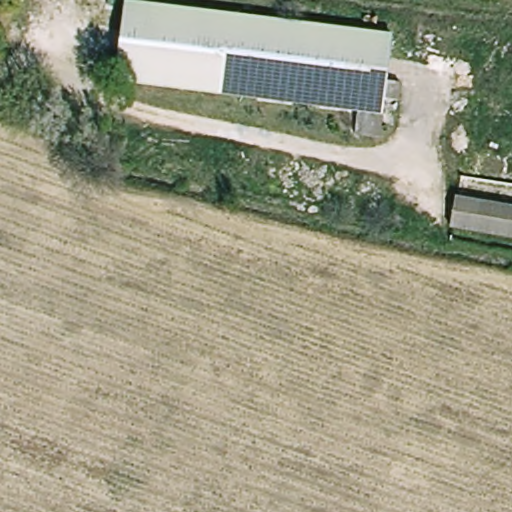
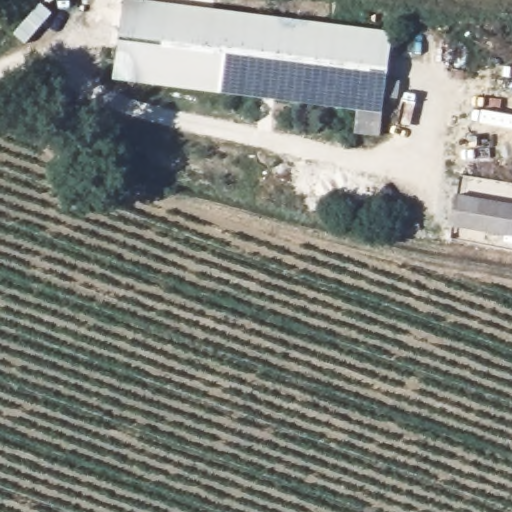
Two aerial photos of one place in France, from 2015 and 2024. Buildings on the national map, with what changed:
unchanged [(125,0),(153,0),(394,30),(380,137),(352,134),(354,111),(114,79),(125,0)]
unchanged [(512,202),(512,233),(452,223),(457,193),(512,202)]

